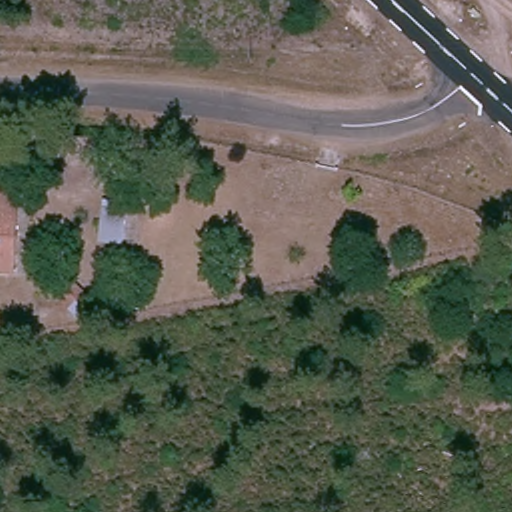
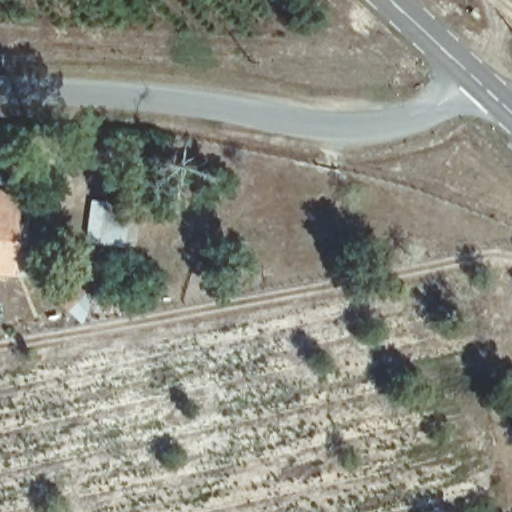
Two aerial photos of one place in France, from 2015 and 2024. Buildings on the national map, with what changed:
unchanged [(17,273),(0,274),(0,191),(13,191),(17,273)]
unchanged [(140,199),(135,247),(94,245),(98,197),(140,199)]

